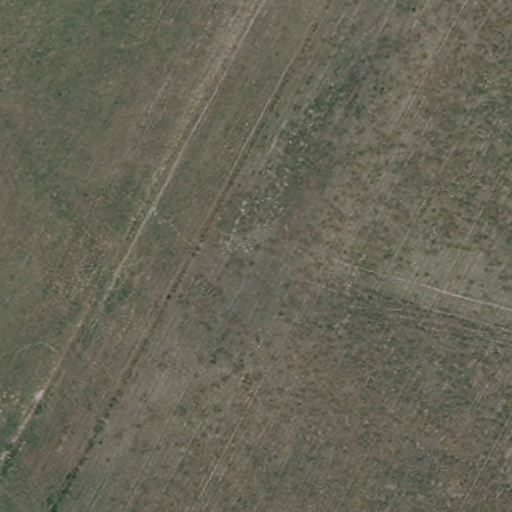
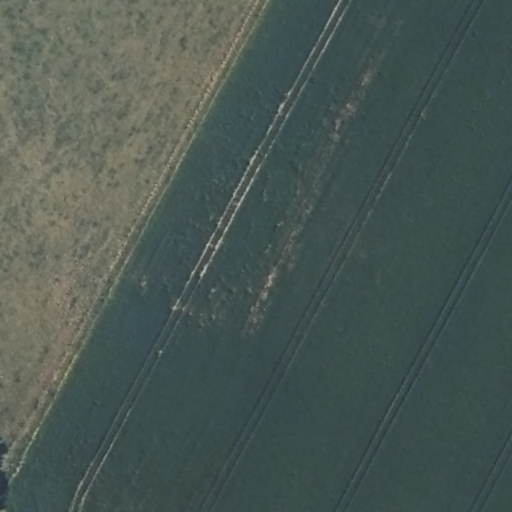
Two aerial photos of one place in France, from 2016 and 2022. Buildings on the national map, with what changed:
[]

